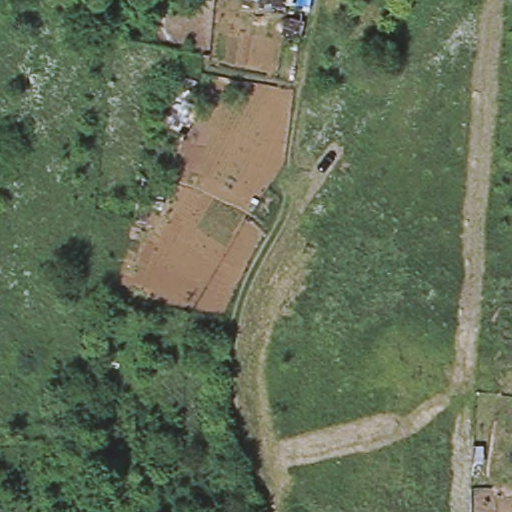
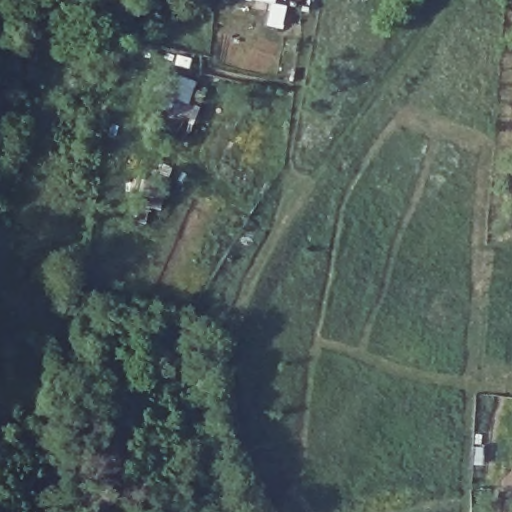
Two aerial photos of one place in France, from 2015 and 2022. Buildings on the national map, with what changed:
unchanged [(175,0),(169,26),(155,24),(160,0),(175,0)]
unchanged [(290,0),(289,12),(252,4),(253,0),(290,0)]

